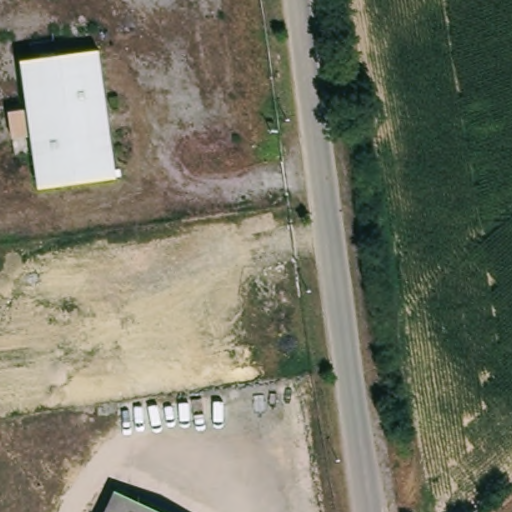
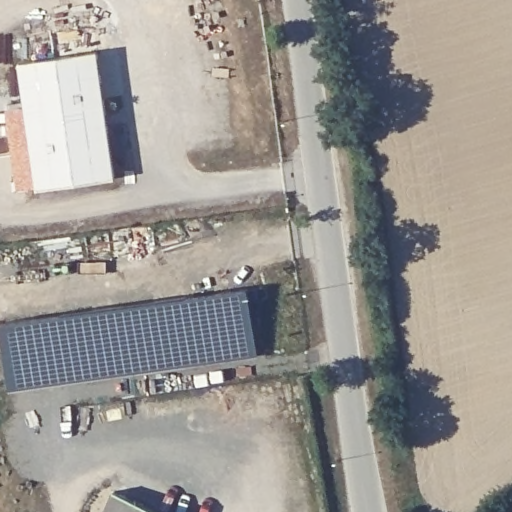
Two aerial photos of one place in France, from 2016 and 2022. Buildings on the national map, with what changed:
unchanged [(119,185),(37,194),(21,61),(101,51),(119,185)]
new [(3,322),(250,287),(259,356),(13,390),(3,322)]
unchanged [(106,512),(114,493),(156,512),(106,512)]

